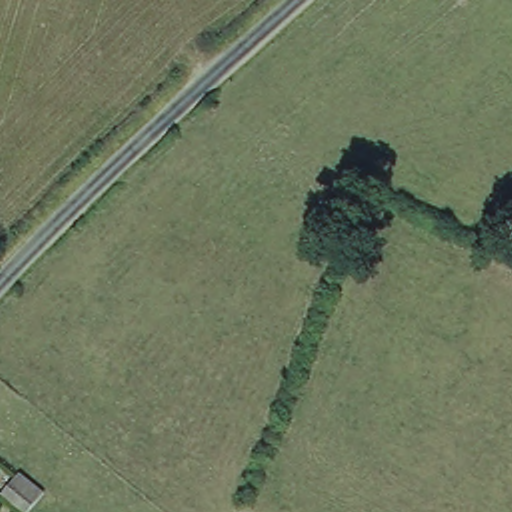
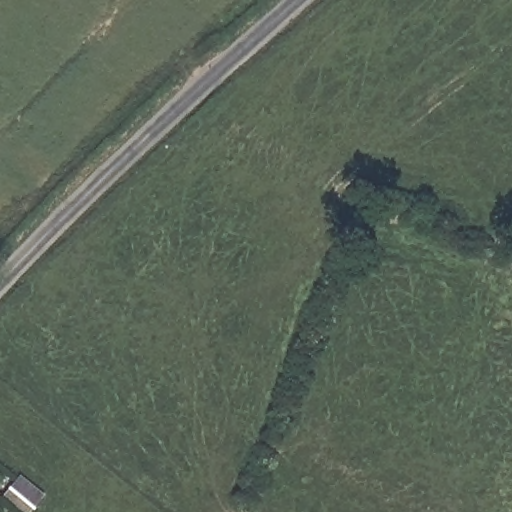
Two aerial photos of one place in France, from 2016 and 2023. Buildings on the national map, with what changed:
unchanged [(46,497),(32,512),(26,512),(6,497),(19,477),(46,497)]

